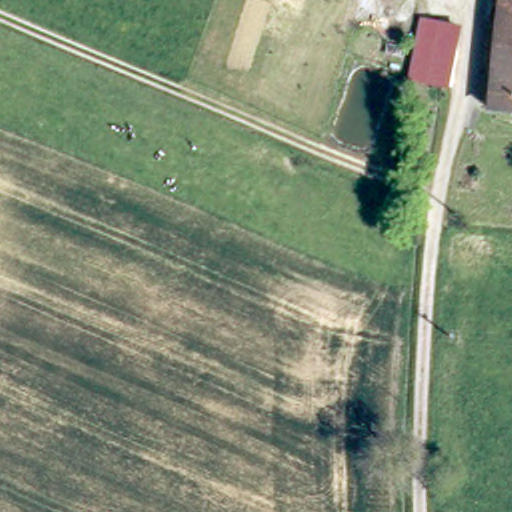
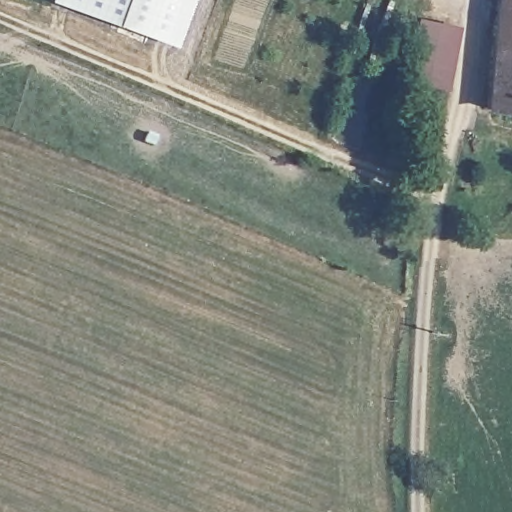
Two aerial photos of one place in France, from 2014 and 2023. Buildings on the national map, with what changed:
new [(50,0),(191,0),(174,47),(50,2),(50,0)]
unchanged [(499,0),(512,0),(512,112),(480,107),(499,0)]
unchanged [(444,76),(414,67),(418,52),(430,9),(460,17),(447,65),(444,76)]

